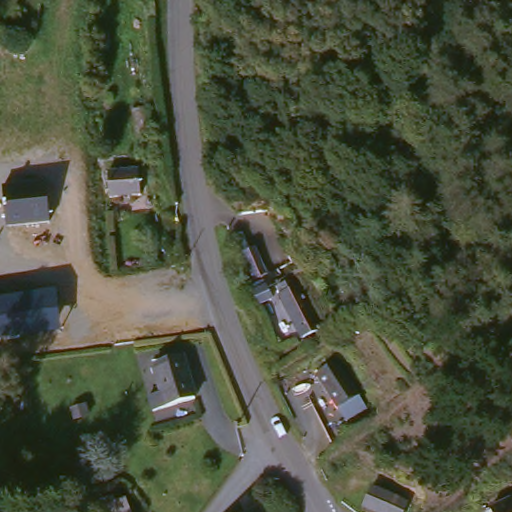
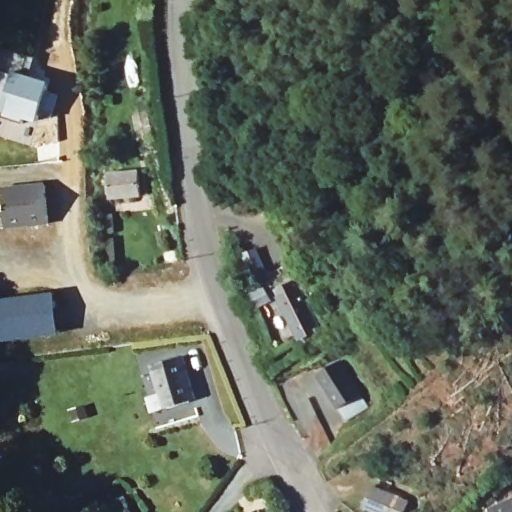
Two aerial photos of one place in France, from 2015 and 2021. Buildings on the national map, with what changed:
new [(23,74),(51,81),(47,93),(58,96),(53,120),(41,117),(40,120),(26,116),(24,124),(0,118),(3,108),(0,108),(0,47),(29,56),(23,74)]
unchanged [(152,135),(137,139),(131,111),(146,108),(152,135)]
unchanged [(140,196),(109,199),(107,174),(138,171),(140,196)]
unchanged [(2,186),(45,182),(49,226),(5,228),(2,186)]
unchanged [(304,284),(326,333),(321,335),(318,331),(305,338),(284,295),(304,284)]
unchanged [(61,334),(0,342),(0,299),(56,293),(61,334)]
unchanged [(199,395),(170,404),(157,408),(153,393),(166,389),(158,360),(186,352),(199,395)]
unchanged [(338,355),(361,386),(340,400),(319,368),(338,355)]
unchanged [(379,486),(414,506),(411,512),(382,512),(367,503),(379,486)]
unchanged [(512,495),(512,512),(496,512),(492,504),(512,495)]
unchanged [(124,498),(130,512),(99,512),(98,508),(124,498)]

